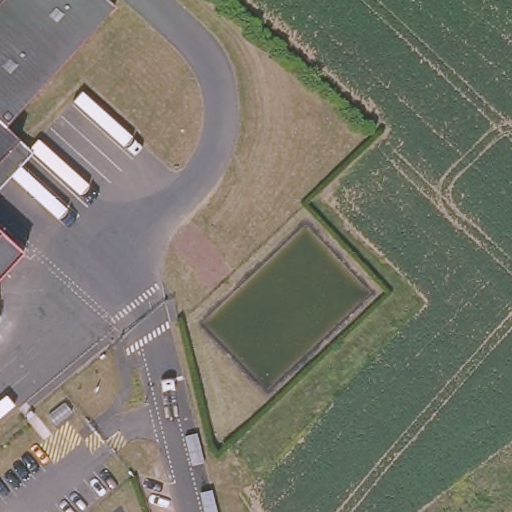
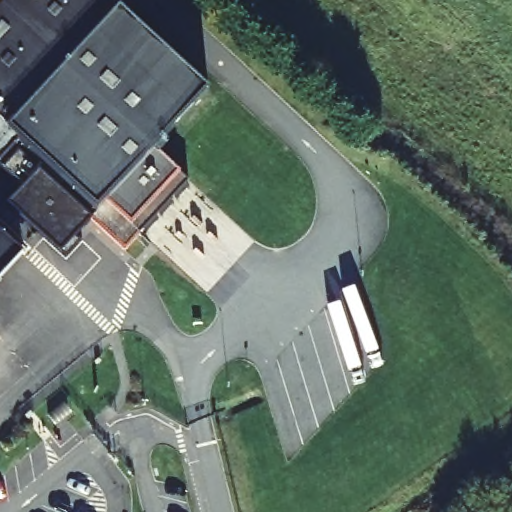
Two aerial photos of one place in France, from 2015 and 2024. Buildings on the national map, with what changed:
unchanged [(5,133),(25,152),(1,179),(0,180),(0,0),(101,0),(115,14),(5,133)]
new [(25,152),(5,133),(115,14),(120,9),(208,91),(153,149),(177,171),(188,180),(125,248),(90,217),(74,234),(80,241),(67,255),(61,249),(10,202),(25,186),(8,171),(25,152)]
unchanged [(0,282),(0,234),(25,255),(0,282)]

